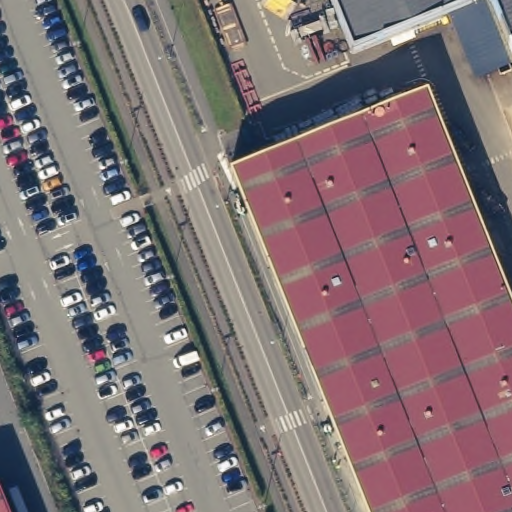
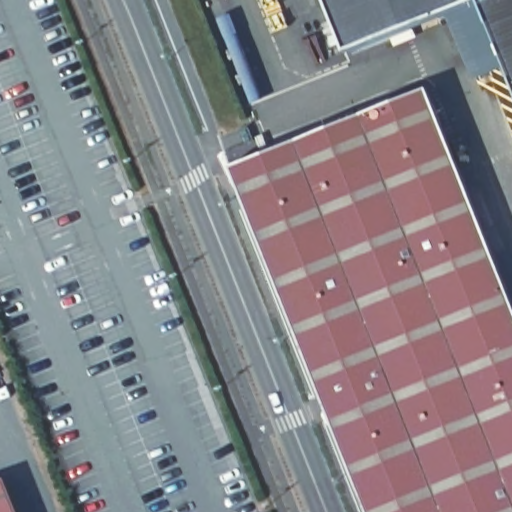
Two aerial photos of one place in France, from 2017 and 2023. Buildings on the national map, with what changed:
unchanged [(335,0),(464,0),(353,45),(335,0)]
unchanged [(512,0),(512,46),(494,0),(512,0)]
unchanged [(231,157),(429,79),(434,94),(512,290),(512,512),(373,512),(231,157)]
unchanged [(13,512),(0,512),(0,480),(13,512)]

